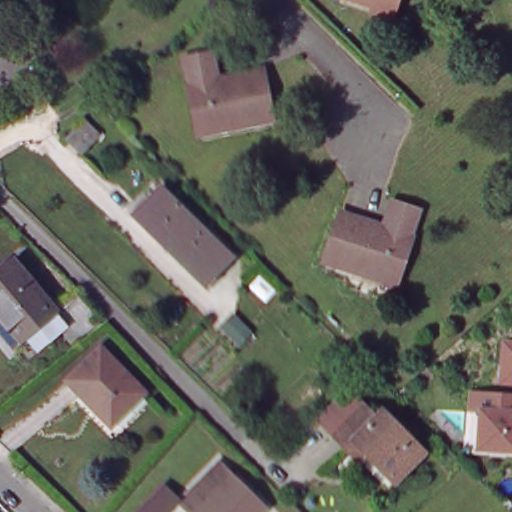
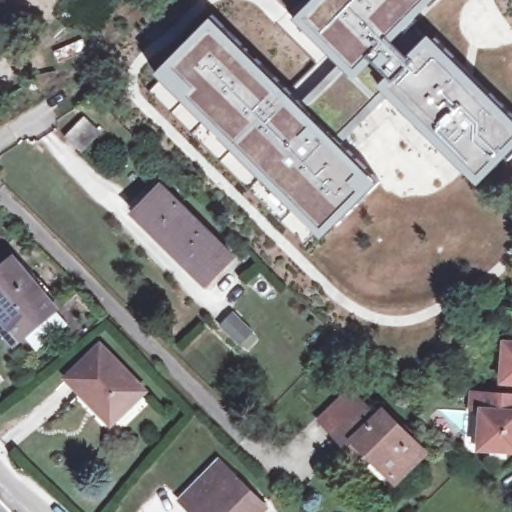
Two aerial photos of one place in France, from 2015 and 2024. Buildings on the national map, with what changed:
new [(184,45),(190,51),(200,41),(193,36),(212,17),(218,22),(305,110),(345,71),(295,20),(315,0),(428,0),(405,22),(430,47),(435,42),(512,117),(512,159),(510,161),(501,152),(479,176),(468,166),(463,171),(383,92),(336,140),(380,184),(338,226),(332,220),(320,232),(295,209),(292,212),(160,80),(155,74),(184,45)]
demolished [(401,0),(398,8),(380,2),(381,0),(401,0)]
demolished [(225,77),(264,69),(273,116),(218,127),(220,131),(201,135),(192,89),(195,88),(188,57),(213,51),(220,81),(226,80),(225,77)]
unchanged [(82,153),(65,137),(85,117),(102,132),(82,153)]
unchanged [(208,282),(166,240),(137,212),(162,187),(191,215),(233,256),(208,282)]
demolished [(380,280),(327,262),(342,217),(379,230),(378,232),(387,235),(395,207),(420,215),(410,246),(411,246),(397,290),(378,283),(380,280)]
unchanged [(0,315),(0,272),(15,260),(56,311),(25,337),(20,340),(0,315)]
unchanged [(500,342),(512,343),(512,384),(497,382),(500,342)]
unchanged [(82,393),(68,378),(101,347),(145,391),(115,421),(85,390),(82,393)]
unchanged [(481,410),(471,410),(472,392),(512,395),(512,452),(479,449),(481,410)]
unchanged [(361,454),(333,426),(361,398),(388,425),(395,417),(436,458),(407,487),(380,460),(373,467),(361,454)]
unchanged [(182,500),(220,462),(268,508),(264,512),(194,512),(182,500)]
unchanged [(167,485),(180,497),(165,512),(139,512),(167,485)]

